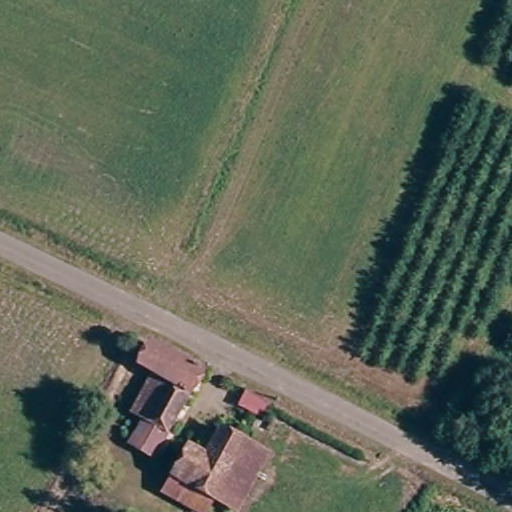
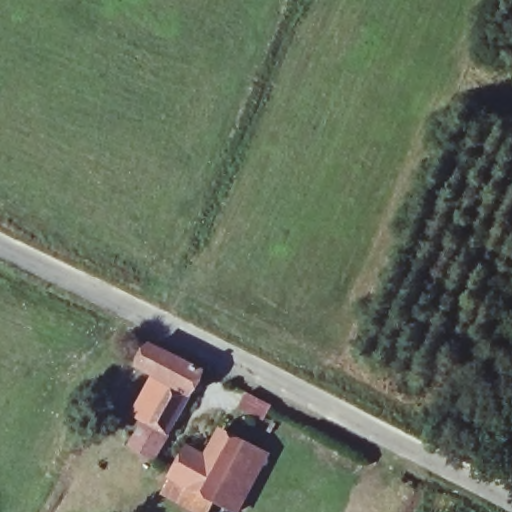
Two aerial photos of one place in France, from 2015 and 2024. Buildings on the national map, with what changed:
unchanged [(204,365),(162,441),(135,427),(144,410),(135,405),(157,366),(141,357),(151,339),(204,365)]
unchanged [(281,394),(273,408),(247,395),(255,380),(281,394)]
unchanged [(213,501),(207,512),(192,512),(156,493),(182,445),(205,456),(220,428),(245,441),(213,501)]
unchanged [(269,454),(239,512),(234,512),(213,501),(245,441),(269,454)]

